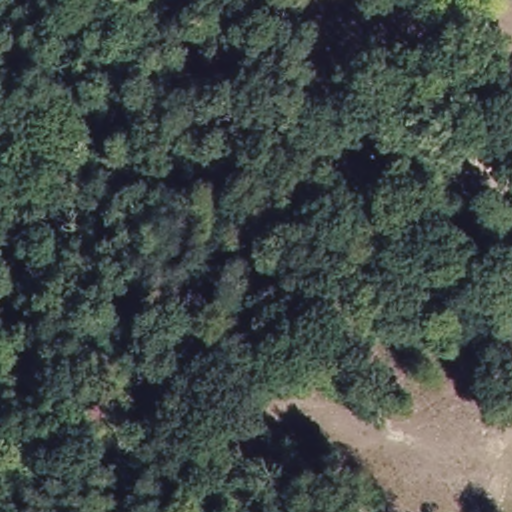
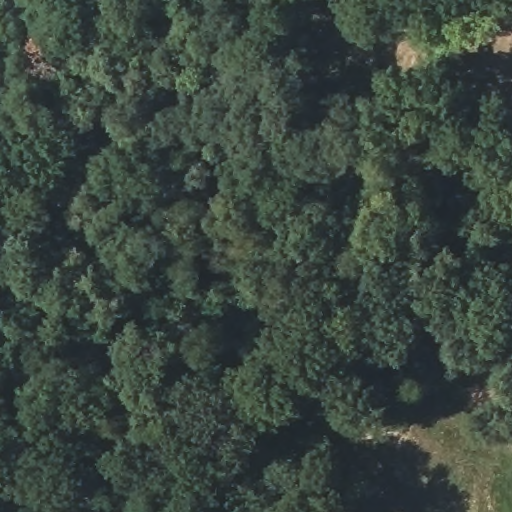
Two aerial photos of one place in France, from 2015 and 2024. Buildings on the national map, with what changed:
[]

